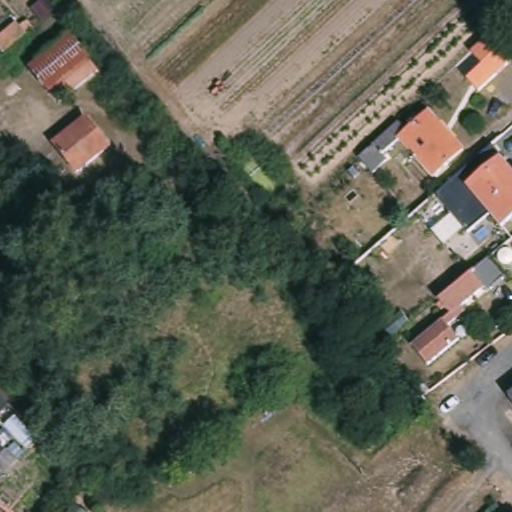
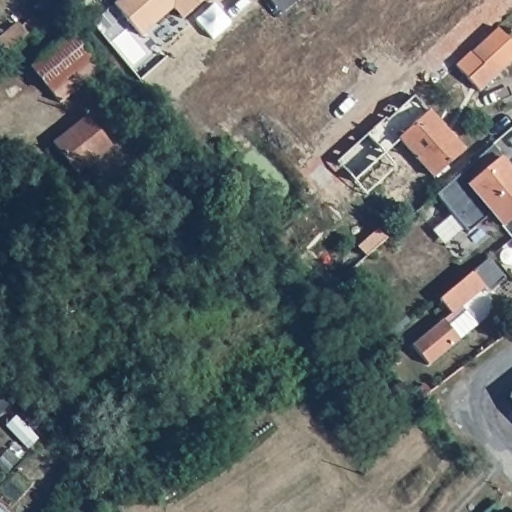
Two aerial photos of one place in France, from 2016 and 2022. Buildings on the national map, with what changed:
new [(141,36),(114,4),(118,0),(201,0),(182,18),(173,9),(141,36)]
new [(471,51),(497,27),(512,43),(512,60),(479,91),(468,78),(483,64),(471,51)]
unchanged [(69,42),(72,41),(98,76),(59,107),(32,73),(64,47),(59,41),(65,37),(69,42)]
unchanged [(463,155),(434,182),(400,145),(384,160),(387,166),(373,178),(361,164),(400,129),(406,135),(428,116),(463,155)]
unchanged [(110,152),(76,178),(55,148),(88,123),(110,152)]
unchanged [(495,164),(512,185),(512,218),(497,231),(464,191),(495,164)]
unchanged [(360,180),(356,184),(351,179),(355,174),(360,180)]
unchanged [(483,285),(460,303),(463,308),(446,322),(457,336),(426,361),(410,342),(449,310),(438,297),(486,258),(494,267),(502,278),(487,290),(483,285)]
unchanged [(424,292),(420,303),(409,299),(413,288),(424,292)]
unchanged [(512,395),(512,401),(509,397),(512,395)]

